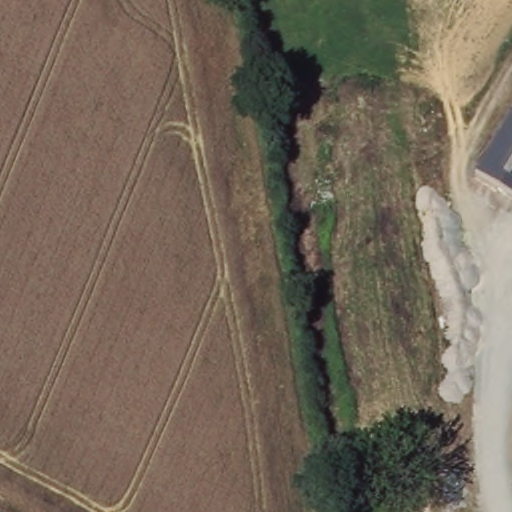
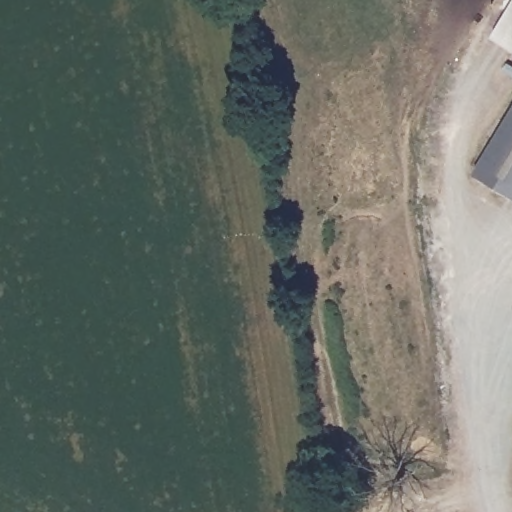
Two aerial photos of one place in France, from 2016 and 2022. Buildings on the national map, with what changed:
new [(508,53),(495,37),(512,8),(512,54),(508,53)]
unchanged [(477,174),(512,114),(512,197),(477,174)]

